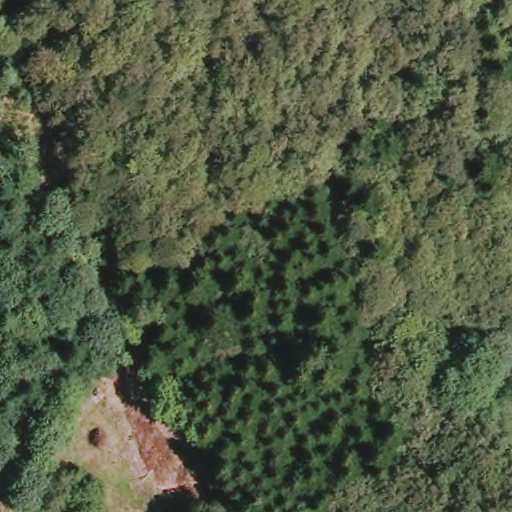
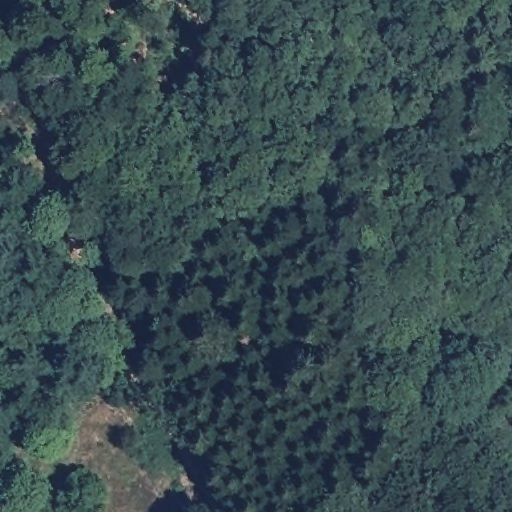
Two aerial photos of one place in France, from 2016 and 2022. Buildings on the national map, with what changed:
[]

